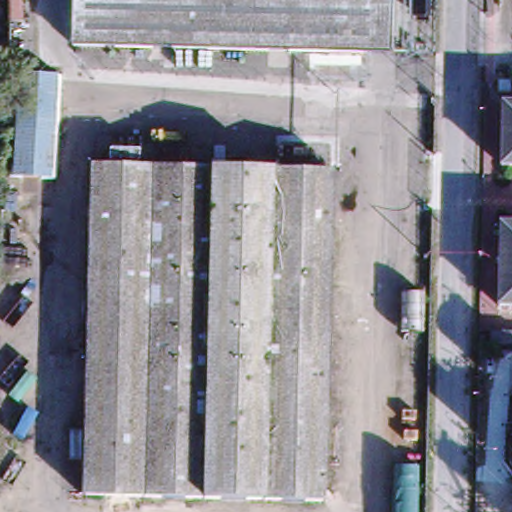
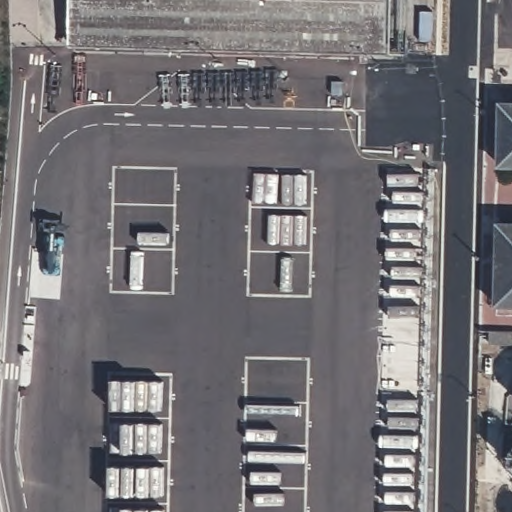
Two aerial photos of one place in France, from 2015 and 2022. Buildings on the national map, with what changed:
unchanged [(366,50),(71,42),(72,0),(367,0),(366,50)]
unchanged [(385,50),(366,50),(367,0),(387,0),(385,50)]
demolished [(54,180),(5,177),(12,74),(60,76),(54,180)]
unchanged [(500,105),(512,105),(512,167),(497,167),(500,105)]
demolished [(330,201),(350,201),(348,278),(328,278),(325,411),(322,502),(80,497),(90,167),(190,169),(276,170),(330,171),(330,201)]
unchanged [(497,226),(512,226),(512,306),(494,306),(497,226)]

